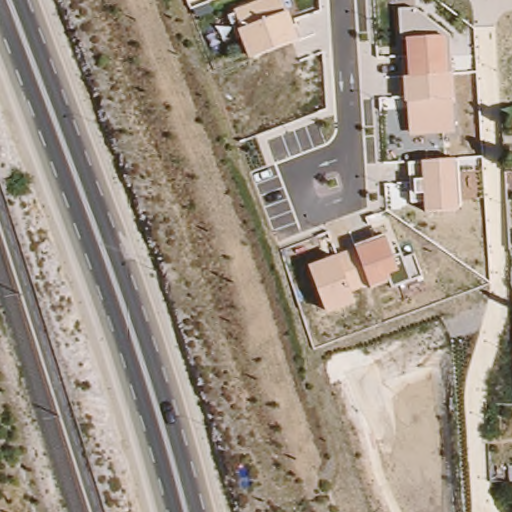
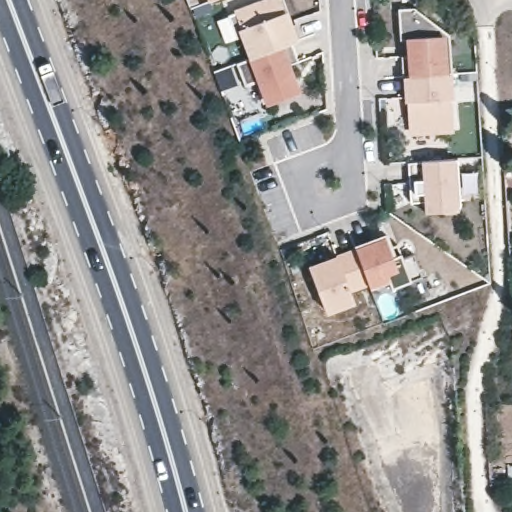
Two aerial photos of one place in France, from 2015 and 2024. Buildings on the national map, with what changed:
unchanged [(281,0),(286,11),(296,39),(249,57),(238,30),(241,29),(235,11),(263,0),(281,0)]
unchanged [(407,102),(405,76),(410,77),(407,51),(402,51),(399,9),(413,9),(449,34),(451,74),(453,99),(453,133),(410,135),(407,102)]
new [(281,45),(289,42),(296,60),(289,62),(300,91),(265,104),(256,81),(245,86),(235,63),(249,57),(281,45)]
unchanged [(425,204),(410,204),(408,160),(421,160),(455,158),(460,210),(426,212),(425,204)]
unchanged [(309,267),(337,255),(358,246),(387,234),(395,256),(401,254),(402,259),(414,253),(422,276),(411,281),(394,288),(390,281),(371,288),(352,294),(355,304),(327,313),(309,267)]

